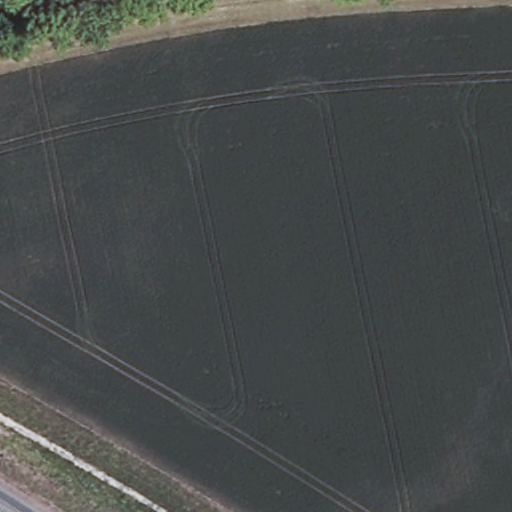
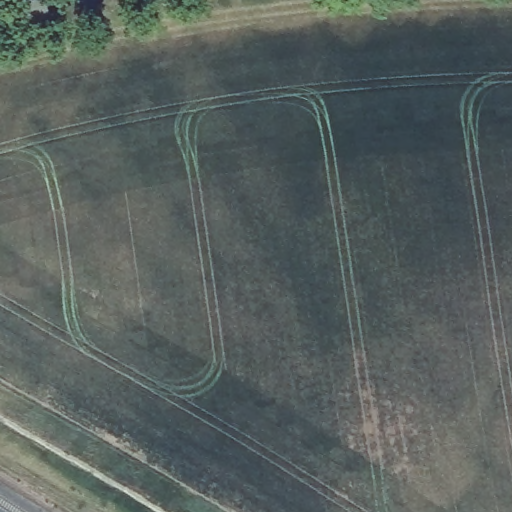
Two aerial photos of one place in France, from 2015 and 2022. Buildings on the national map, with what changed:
[]

